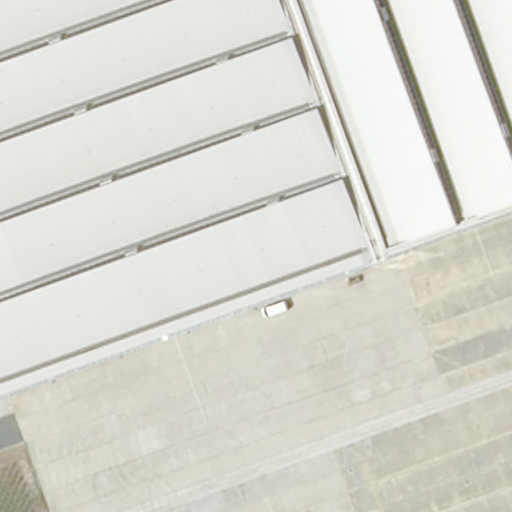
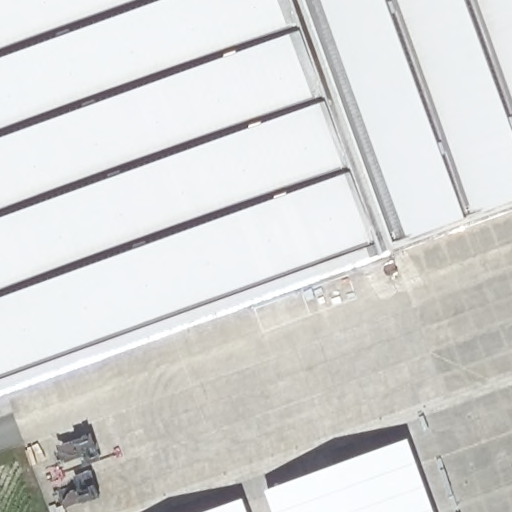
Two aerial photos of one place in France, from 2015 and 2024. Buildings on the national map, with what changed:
unchanged [(0,0),(308,0),(400,253),(0,392),(0,0)]
unchanged [(400,253),(308,0),(512,0),(512,212),(400,253)]
new [(410,439),(437,512),(275,512),(268,492),(410,439)]
new [(245,498),(250,512),(207,512),(245,498)]

